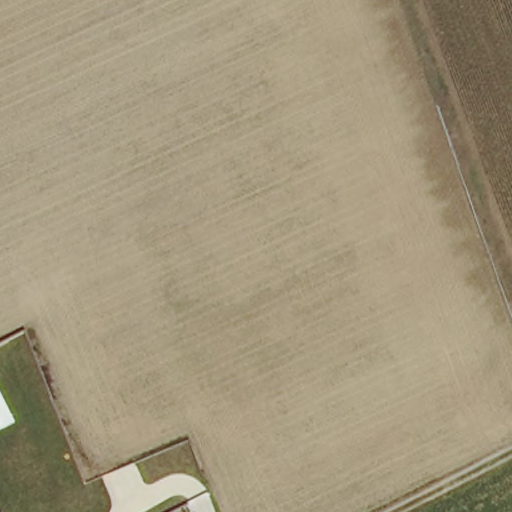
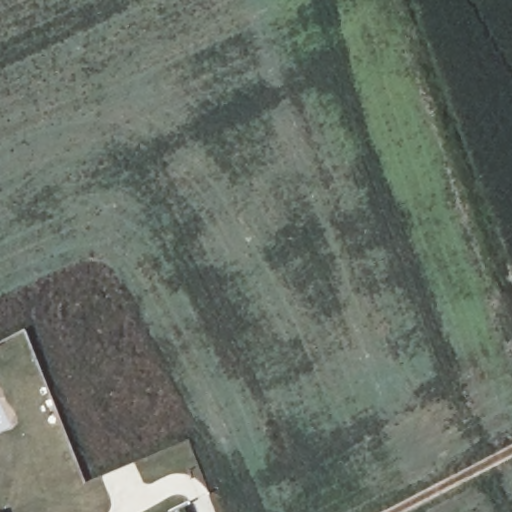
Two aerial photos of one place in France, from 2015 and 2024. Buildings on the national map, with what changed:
[]

